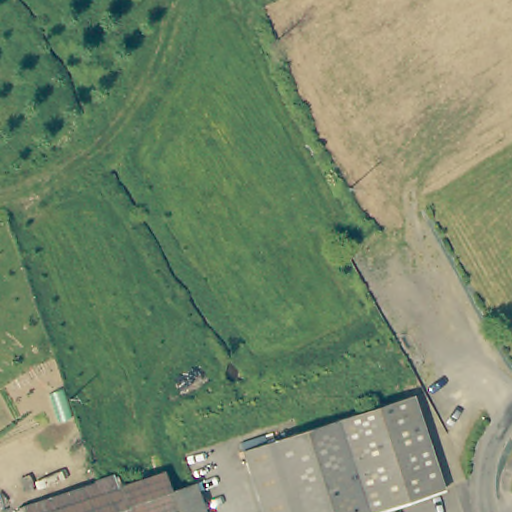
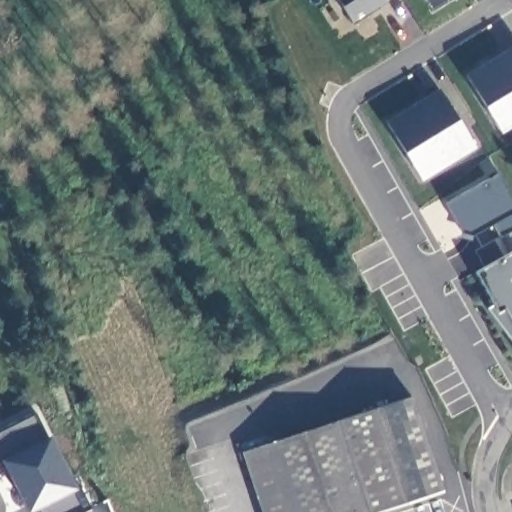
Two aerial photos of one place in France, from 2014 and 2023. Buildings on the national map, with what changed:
new [(337,0),(391,0),(352,24),(337,0)]
new [(425,0),(448,0),(431,9),(425,0)]
new [(465,75),(512,44),(512,123),(501,130),(465,75)]
new [(420,181),(384,120),(442,87),(476,147),(420,181)]
new [(493,223),(471,236),(461,231),(446,203),(499,172),(512,196),(512,229),(498,236),(493,223)]
new [(512,340),(487,309),(493,304),(478,271),(512,253),(512,340)]
unchanged [(239,450),(289,434),(293,433),(333,420),(405,397),(437,493),(378,512),(258,512),(239,450)]
new [(82,512),(37,512),(34,506),(29,508),(16,483),(20,480),(9,461),(0,465),(0,430),(35,412),(49,439),(72,485),(77,483),(88,509),(82,512)]
demolished [(119,486),(158,473),(164,493),(171,512),(129,512),(119,486)]
demolished [(178,510),(174,512),(171,512),(164,493),(191,483),(201,512),(179,512),(178,510)]

